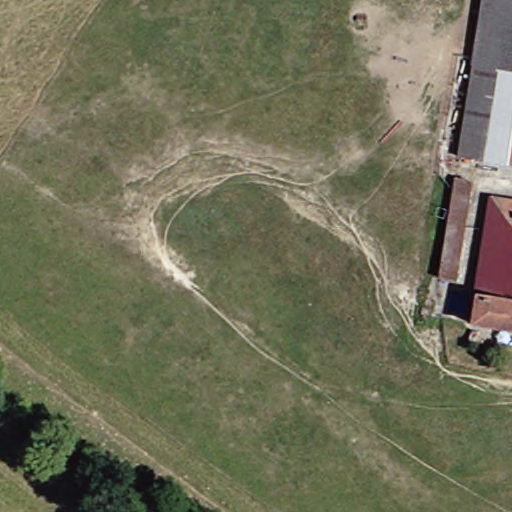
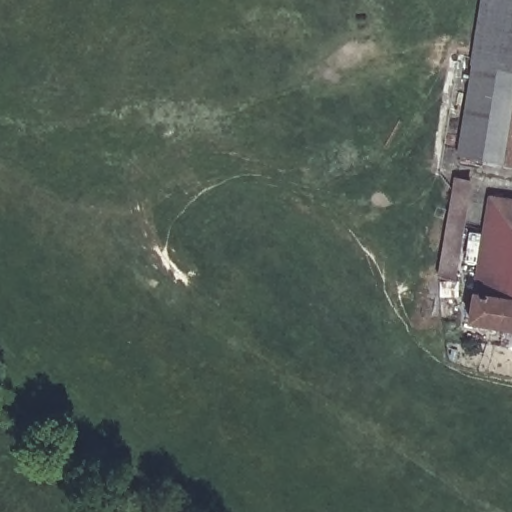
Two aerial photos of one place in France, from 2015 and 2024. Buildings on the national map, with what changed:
unchanged [(472,0),(512,0),(512,9),(472,2),(472,0)]
unchanged [(443,282),(426,280),(472,2),(512,9),(512,167),(466,157),(443,282)]
unchanged [(512,331),(458,322),(479,198),(512,203),(512,331)]

